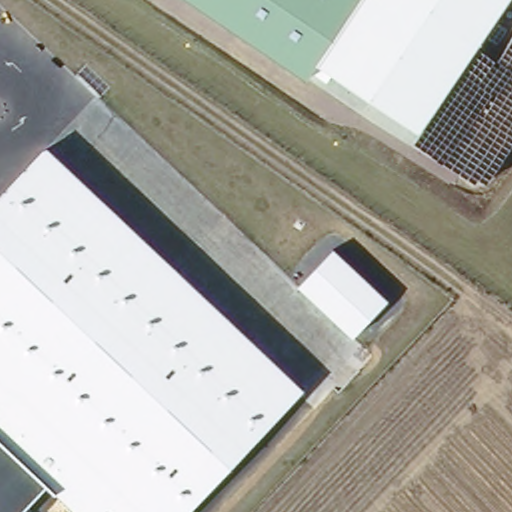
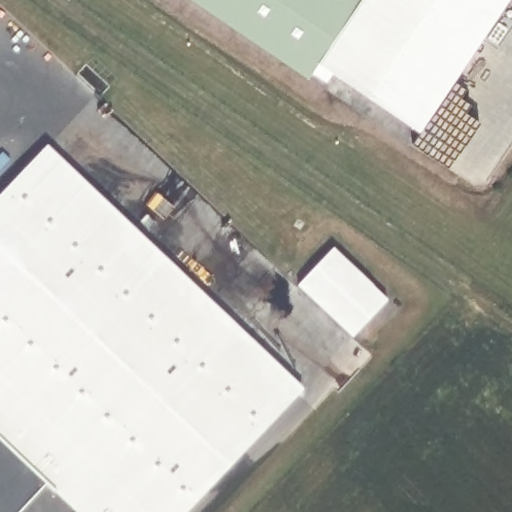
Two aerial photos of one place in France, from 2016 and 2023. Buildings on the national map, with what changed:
unchanged [(196,0),(353,0),(300,75),(196,0)]
unchanged [(311,60),(353,0),(509,0),(420,132),(311,60)]
unchanged [(46,485),(21,512),(0,512),(0,198),(47,147),(303,390),(190,512),(74,512),(46,485)]
unchanged [(353,338),(298,288),(334,250),(388,301),(353,338)]

